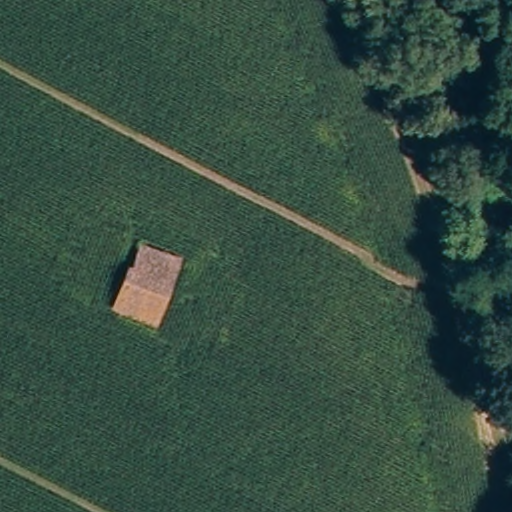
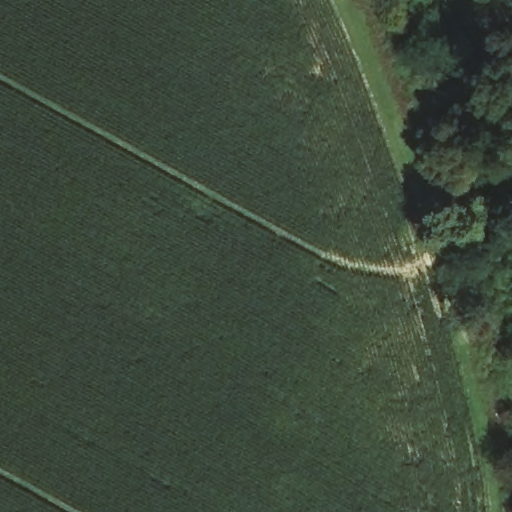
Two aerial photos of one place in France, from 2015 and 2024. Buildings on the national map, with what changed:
demolished [(112,308),(138,243),(183,258),(155,326),(112,308)]

